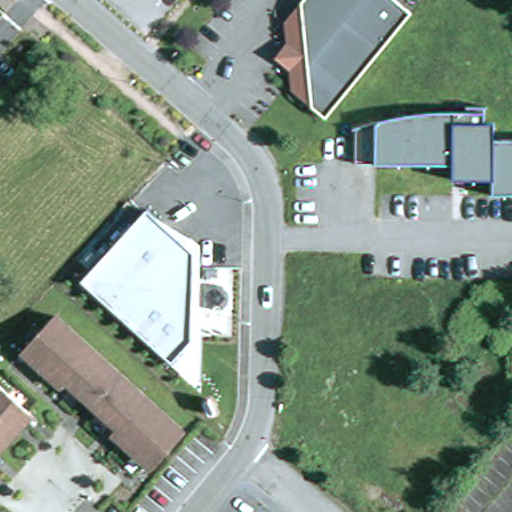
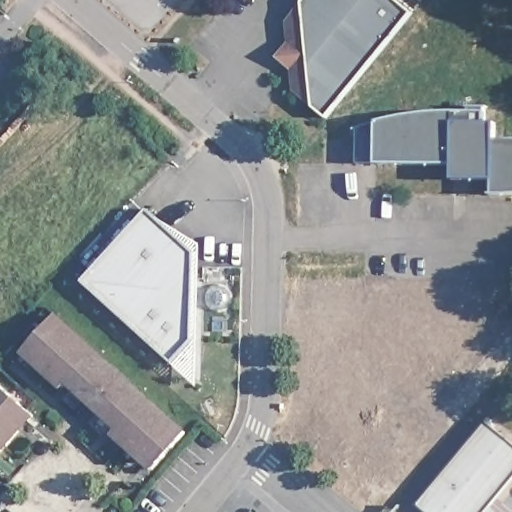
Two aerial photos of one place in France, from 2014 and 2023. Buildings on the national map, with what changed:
unchanged [(290,47),(286,25),(302,5),(307,0),(394,0),(413,15),(327,122),(312,109),(293,94),(292,71),(290,47)]
unchanged [(512,142),(512,190),(493,191),(466,164),(382,168),(362,164),(361,131),(397,120),(453,113),(485,108),(486,126),(494,126),(495,143),(512,142)]
unchanged [(77,288),(147,210),(200,251),(196,391),(77,288)]
unchanged [(138,462),(112,439),(117,433),(65,388),(60,393),(36,372),(20,359),(25,352),(53,322),(185,436),(157,468),(152,474),(138,462)]
unchanged [(31,414),(17,431),(0,451),(0,388),(25,409),(31,414)]
new [(414,504),(484,421),(512,445),(512,474),(488,503),(498,512),(424,512),(414,504)]

